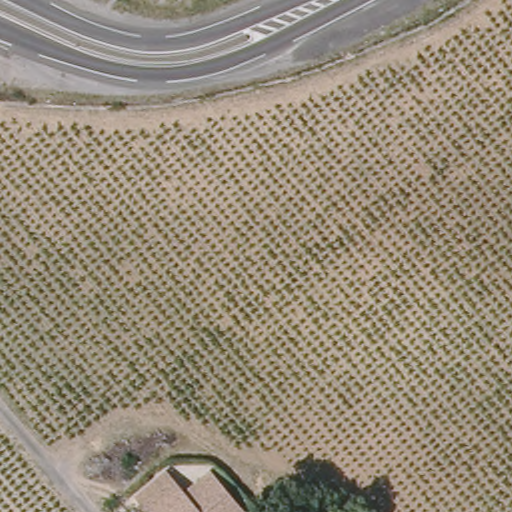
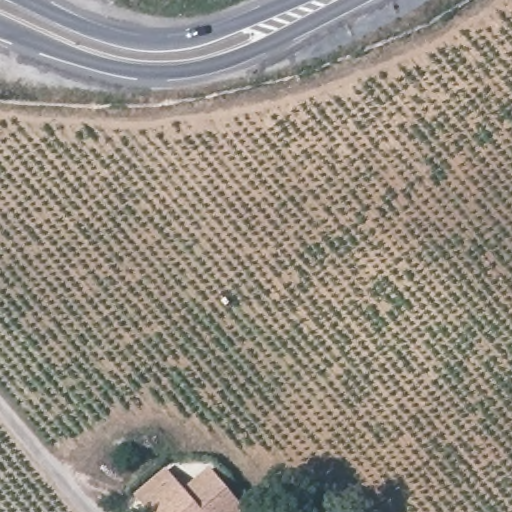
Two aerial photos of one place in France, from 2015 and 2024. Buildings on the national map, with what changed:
unchanged [(132,492),(164,467),(183,490),(211,468),(244,510),(242,512),(146,512),(132,492)]

